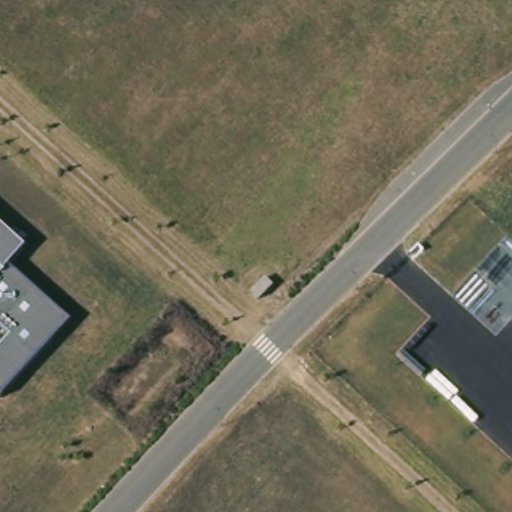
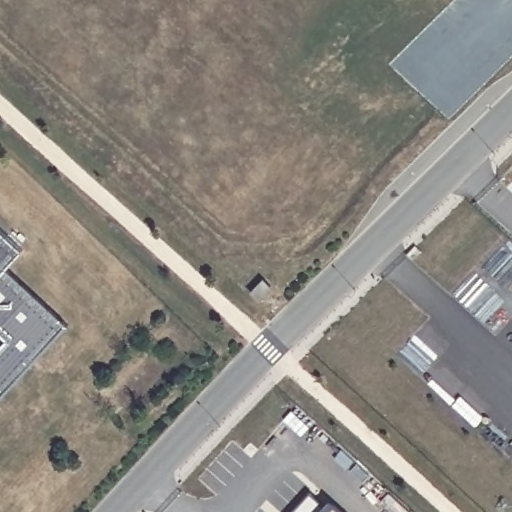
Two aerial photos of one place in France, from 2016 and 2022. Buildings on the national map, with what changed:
unchanged [(22,250),(6,271),(66,324),(0,397),(0,229),(22,250)]
new [(327,511),(333,505),(341,512),(298,512),(312,497),(327,511)]

